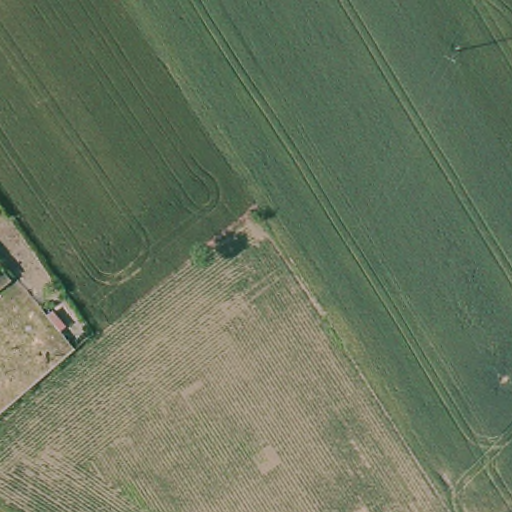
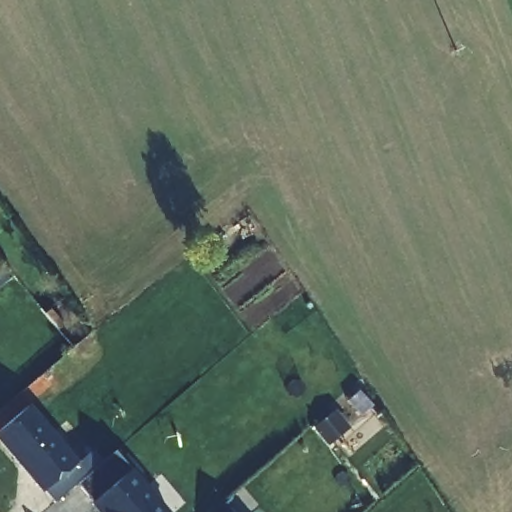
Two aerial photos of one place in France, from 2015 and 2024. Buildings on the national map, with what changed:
new [(44,489),(0,437),(0,431),(30,405),(77,463),(44,489)]
new [(91,505),(134,468),(171,512),(97,512),(91,505)]

